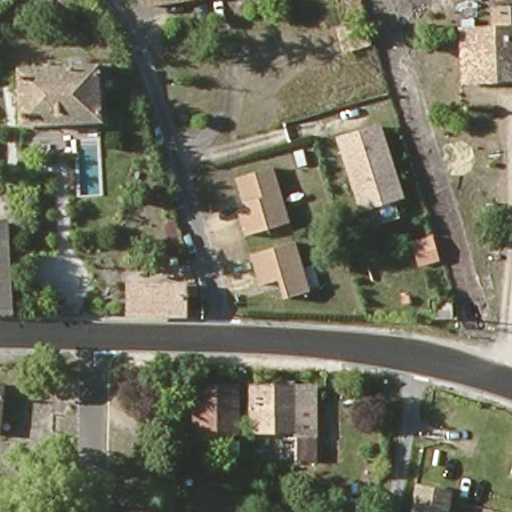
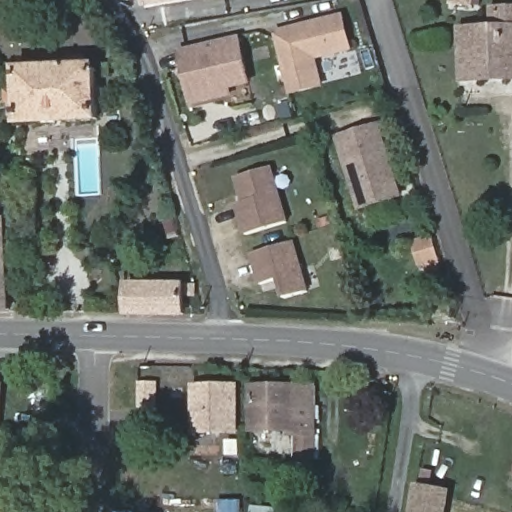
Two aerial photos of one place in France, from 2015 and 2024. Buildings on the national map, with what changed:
unchanged [(204,0),(146,10),(145,0),(204,0)]
demolished [(385,24),(386,0),(408,0),(407,25),(385,24)]
unchanged [(512,8),(512,31),(495,32),(497,8),(512,8)]
new [(346,51),(312,56),(320,86),(292,90),(278,31),(342,19),(346,51)]
demolished [(365,21),(372,47),(345,55),(337,28),(365,21)]
unchanged [(463,83),(461,35),(496,33),(512,32),(512,82),(506,82),(485,83),(463,83)]
new [(225,89),(226,96),(189,104),(177,50),(236,37),(244,73),(246,85),(225,89)]
unchanged [(97,79),(99,121),(19,126),(17,106),(13,106),(13,95),(16,94),(15,71),(110,66),(110,79),(97,79)]
unchanged [(380,124),(405,199),(360,214),(335,138),(380,124)]
unchanged [(289,223),(246,237),(237,208),(245,206),(237,181),(272,170),(289,223)]
unchanged [(0,220),(5,220),(10,314),(0,313),(0,220)]
unchanged [(306,293),(281,300),(275,281),(257,287),(248,256),(290,243),(306,293)]
unchanged [(190,291),(190,307),(181,307),(180,317),(124,316),(124,291),(190,291)]
demolished [(462,319),(465,304),(483,307),(481,321),(462,319)]
unchanged [(433,320),(435,305),(454,308),(452,322),(433,320)]
unchanged [(296,433),(254,433),(254,391),(296,390),(296,433)]
unchanged [(318,390),(318,463),(296,463),(296,433),(296,390),(318,390)]
unchanged [(195,433),(195,391),(237,391),(237,433),(195,433)]
unchanged [(421,489),(451,495),(448,512),(417,512),(421,489)]
unchanged [(327,509),(344,509),(344,512),(327,512),(327,509)]

